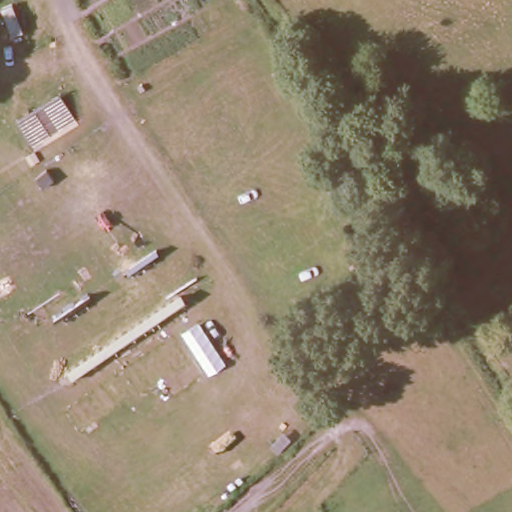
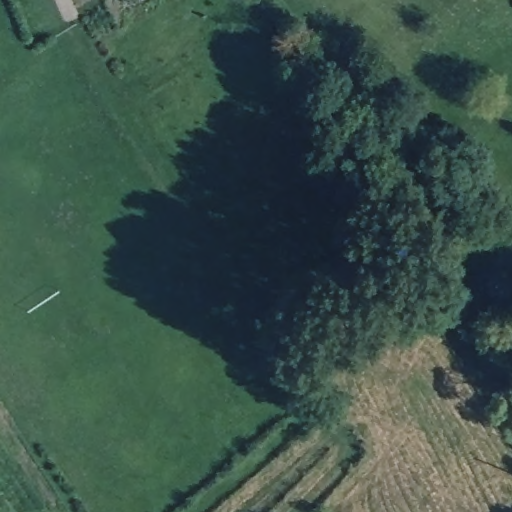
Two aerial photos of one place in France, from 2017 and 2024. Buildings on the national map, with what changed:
[]

